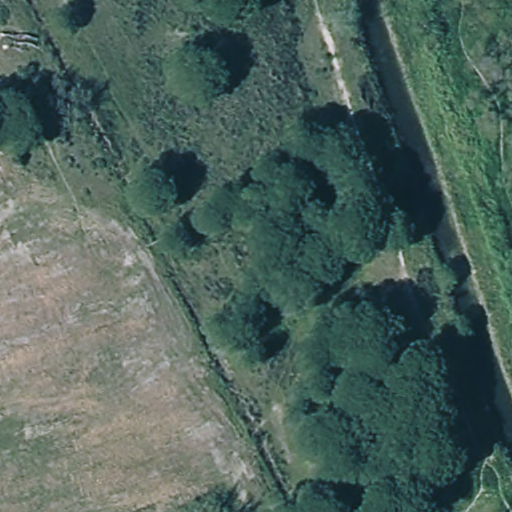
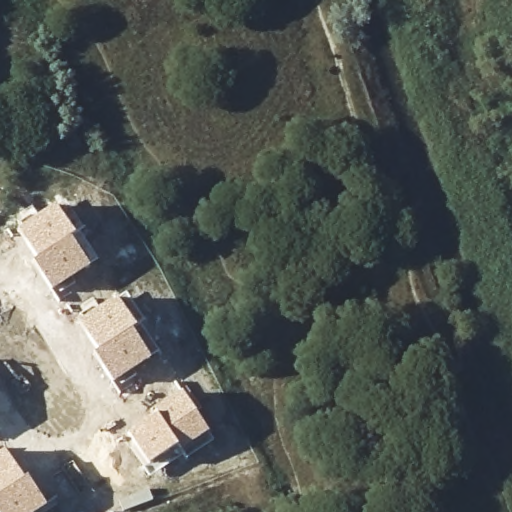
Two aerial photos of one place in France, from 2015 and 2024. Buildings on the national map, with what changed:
new [(55,205),(74,234),(69,238),(89,268),(51,290),(33,263),(38,259),(18,229),(55,205)]
new [(116,297),(136,328),(132,330),(151,358),(112,383),(93,354),(98,351),(78,323),(116,297)]
new [(155,414),(152,410),(181,392),(208,432),(213,440),(186,459),(184,455),(149,478),(144,468),(148,465),(128,434),(155,414)]
new [(26,477),(45,506),(36,512),(0,512),(0,453),(4,450),(23,479),(26,477)]

